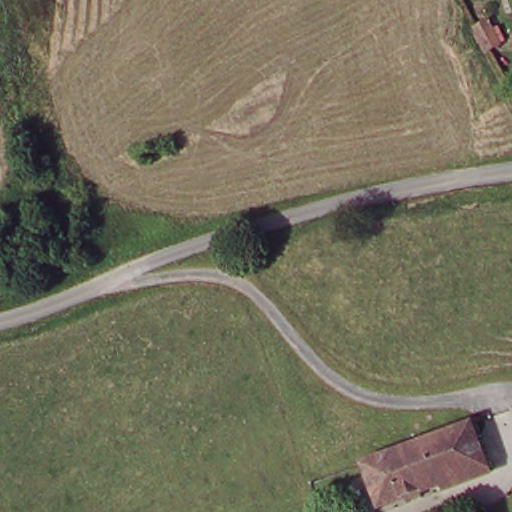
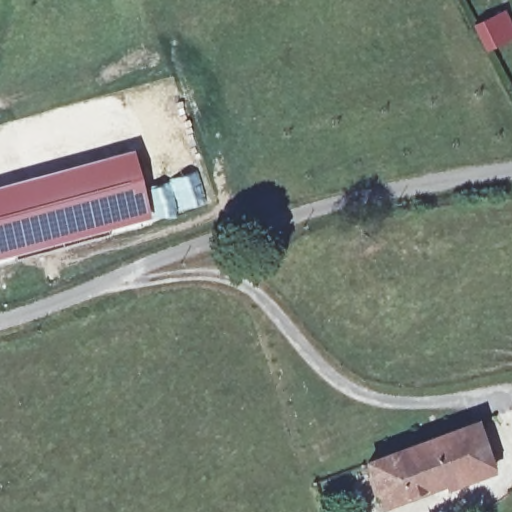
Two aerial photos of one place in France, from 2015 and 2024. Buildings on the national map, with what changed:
unchanged [(497,47),(484,54),(473,30),(486,23),(497,47)]
new [(152,206),(147,187),(169,180),(198,170),(209,204),(179,214),(152,220),(85,235),(0,259),(0,185),(132,148),(147,202),(149,206),(152,206)]
unchanged [(494,461),(387,503),(373,464),(481,423),(494,461)]

